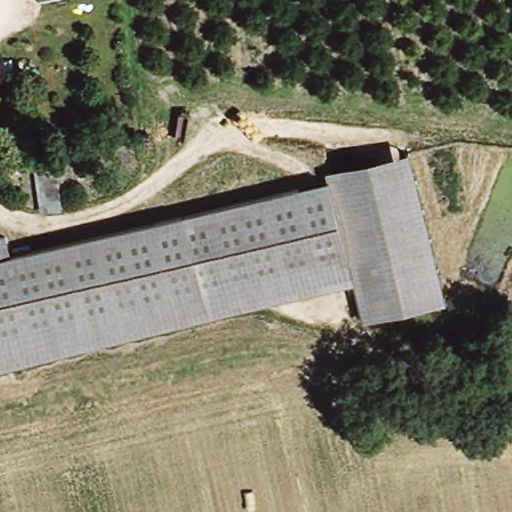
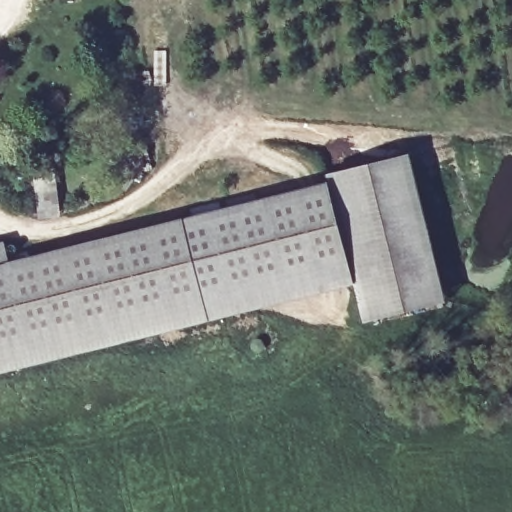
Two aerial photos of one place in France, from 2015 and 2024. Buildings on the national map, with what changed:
unchanged [(0,271),(10,268),(37,260),(335,178),(332,170),(412,147),(454,293),(375,315),(363,276),(51,363),(0,377),(0,271)]
unchanged [(59,172),(62,218),(39,220),(36,175),(59,172)]
unchanged [(10,268),(0,271),(0,249),(2,249),(10,268)]

